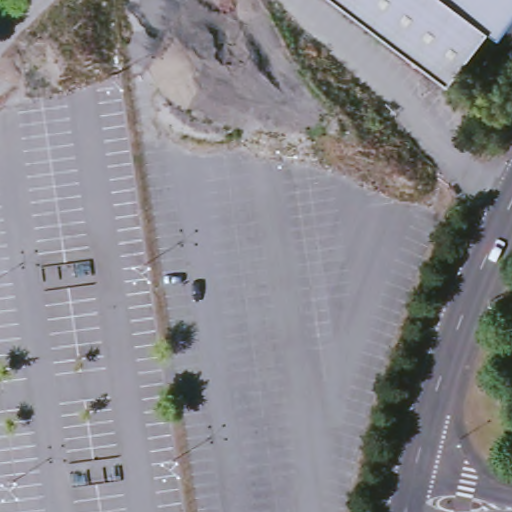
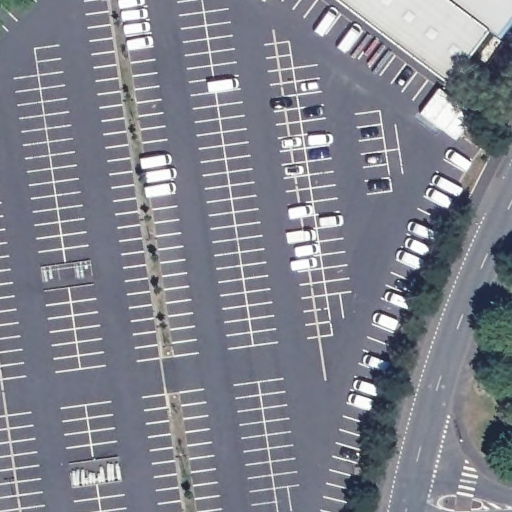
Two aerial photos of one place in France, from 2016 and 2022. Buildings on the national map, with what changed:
unchanged [(443,78),(339,0),(454,0),(485,23),(443,78)]
unchanged [(454,0),(512,0),(512,11),(496,32),(485,23),(454,0)]

